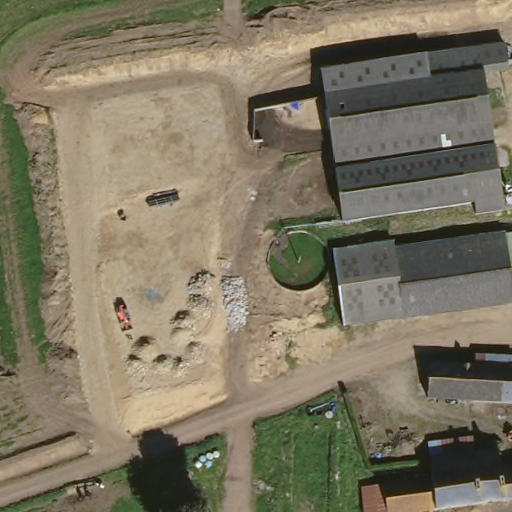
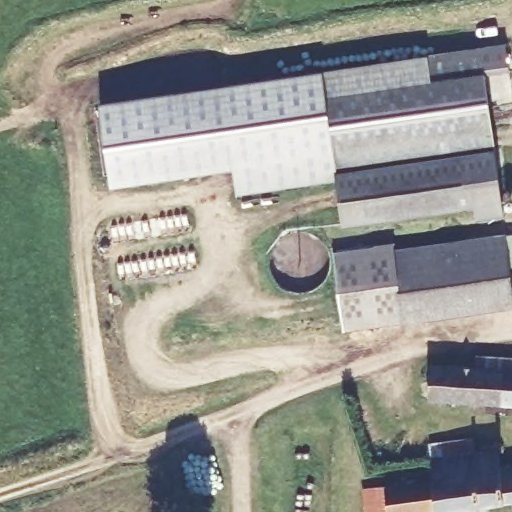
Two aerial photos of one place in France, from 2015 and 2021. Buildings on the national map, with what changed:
unchanged [(499,42),(504,67),(480,72),(324,104),(319,80),(499,42)]
unchanged [(509,208),(481,214),(479,202),(349,229),(324,104),(480,72),(509,208)]
new [(99,105),(319,73),(319,80),(324,104),(339,179),(238,192),(234,167),(111,186),(99,105)]
unchanged [(512,228),(512,294),(410,315),(397,252),(506,230),(512,228)]
unchanged [(410,315),(411,317),(411,320),(386,325),(352,332),(336,257),(396,245),(397,252),(410,315)]
unchanged [(512,407),(428,401),(425,376),(512,379),(512,407)]
unchanged [(490,450),(491,471),(494,471),(512,470),(512,504),(441,512),(375,512),(375,487),(381,486),(426,479),(426,455),(454,452),(490,450)]

